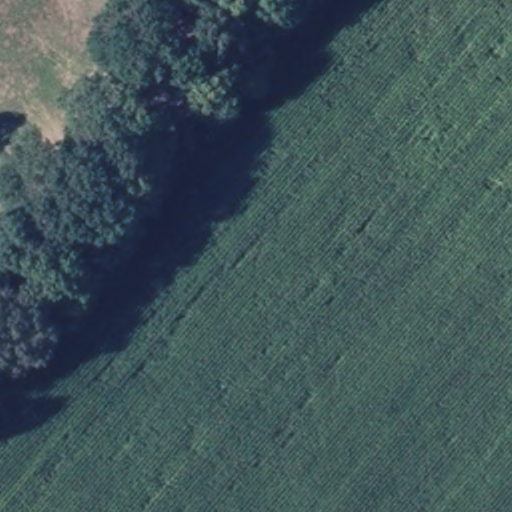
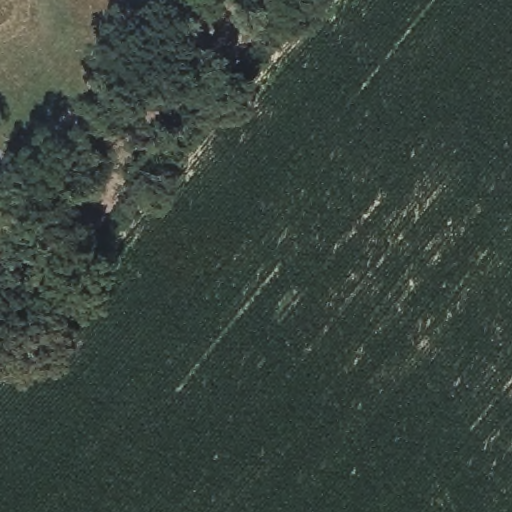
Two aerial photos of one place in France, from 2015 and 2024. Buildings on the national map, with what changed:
unchanged [(21,261),(3,291),(0,290),(0,249),(21,261)]

